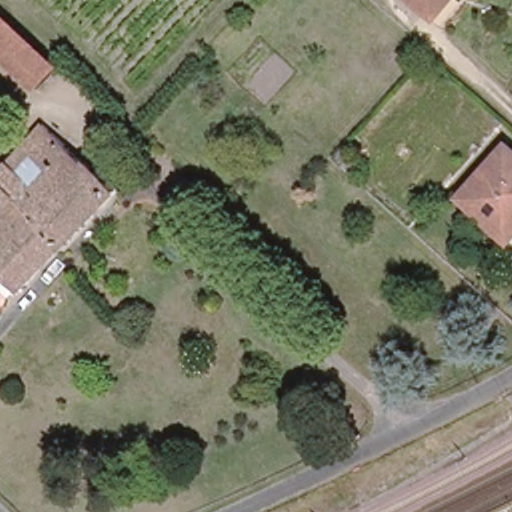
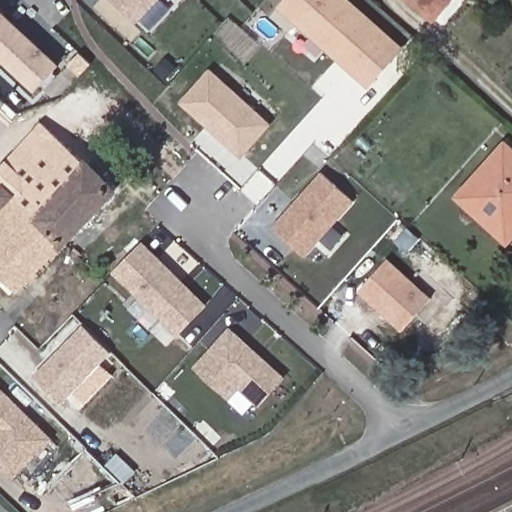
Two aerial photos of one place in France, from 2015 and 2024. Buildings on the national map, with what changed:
new [(102,3),(105,0),(165,0),(133,33),(102,3)]
new [(282,7),(288,0),(346,0),(401,48),(375,78),(369,84),(339,58),(282,7)]
unchanged [(416,0),(447,0),(433,15),(416,0)]
unchanged [(0,55),(0,8),(63,66),(50,80),(40,90),(29,81),(0,55)]
new [(183,102),(210,72),(269,124),(242,154),(183,102)]
unchanged [(95,166),(96,166),(96,167),(121,190),(26,294),(22,291),(11,283),(10,281),(9,281),(0,273),(0,168),(44,119),(95,166)]
unchanged [(500,234),(459,196),(506,145),(512,152),(512,233),(506,239),(500,234)]
new [(305,255),(274,227),(321,174),(352,202),(305,255)]
new [(180,332),(116,270),(142,243),(206,305),(180,332)]
new [(431,298),(402,330),(359,291),(388,259),(431,298)]
new [(81,324),(111,353),(62,403),(33,374),(81,324)]
new [(284,377),(259,404),(239,386),(230,396),(196,366),(230,329),(284,377)]
new [(11,477),(0,466),(0,391),(51,440),(11,477)]

